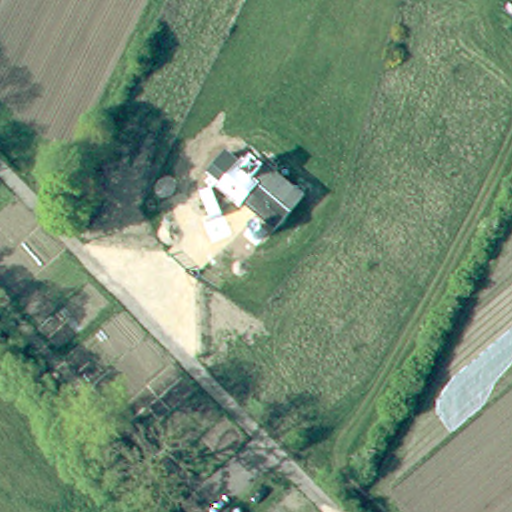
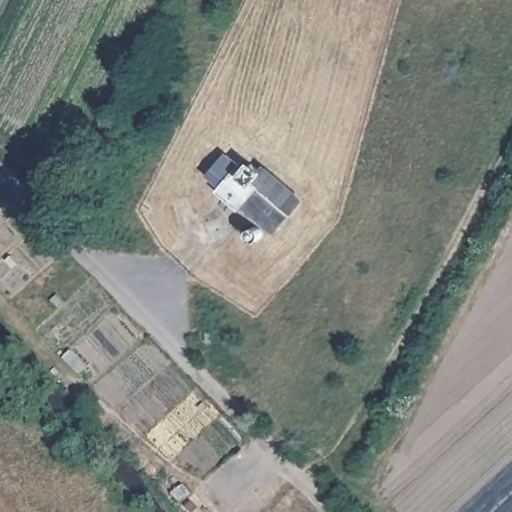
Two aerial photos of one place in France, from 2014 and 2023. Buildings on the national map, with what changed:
unchanged [(245,204),(240,209),(220,192),(245,165),(250,170),(255,165),(269,179),(261,187),(292,216),(275,232),(245,204)]

